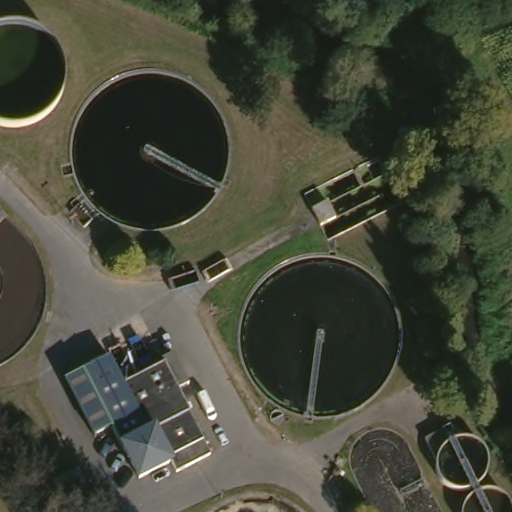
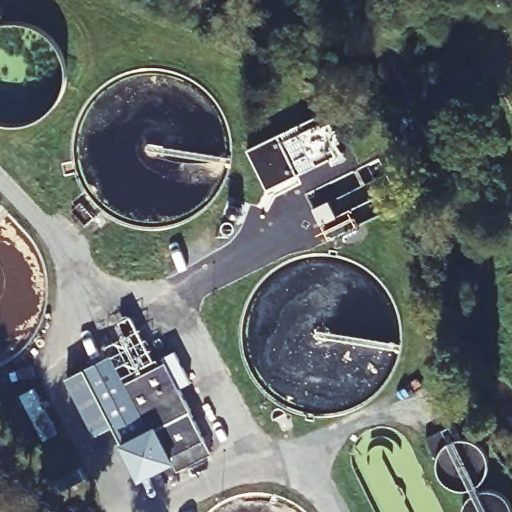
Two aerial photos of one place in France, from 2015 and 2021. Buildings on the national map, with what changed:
new [(322,120),(327,131),(337,126),(345,147),(335,151),(340,162),(267,193),(249,152),(322,120)]
unchanged [(131,440),(109,450),(83,392),(100,384),(89,360),(123,346),(136,377),(169,363),(164,354),(188,344),(203,380),(192,385),(222,454),(186,469),(183,461),(148,476),(131,440)]
new [(64,493),(60,482),(80,475),(84,487),(64,493)]

